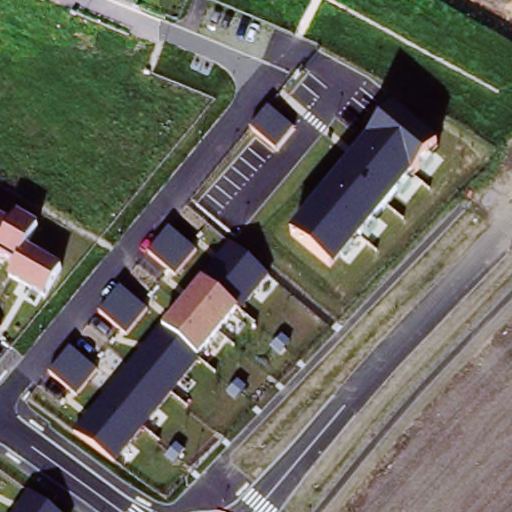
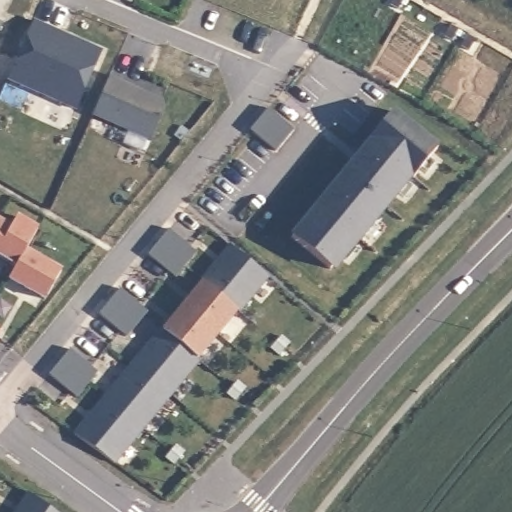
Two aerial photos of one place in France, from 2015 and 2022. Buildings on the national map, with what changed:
new [(33,22),(65,36),(75,41),(102,52),(77,111),(8,80),(33,22)]
new [(2,25),(0,29),(0,24),(2,25)]
new [(150,140),(93,115),(110,79),(163,102),(165,107),(150,140)]
unchanged [(269,109),(293,129),(276,150),(251,129),(269,109)]
unchanged [(370,147),(366,144),(395,112),(440,151),(335,273),(291,236),(370,147)]
unchanged [(7,279),(15,268),(0,260),(0,217),(12,224),(18,216),(39,228),(28,252),(61,271),(45,300),(7,279)]
unchanged [(170,231),(196,253),(176,277),(150,255),(170,231)]
unchanged [(233,247),(270,275),(116,462),(81,438),(233,247)]
unchanged [(120,288),(147,311),(126,335),(99,312),(120,288)]
unchanged [(1,330),(0,332),(0,329),(1,330)]
unchanged [(70,350),(96,371),(76,396),(50,373),(70,350)]
unchanged [(18,512),(30,493),(55,512),(18,512)]

